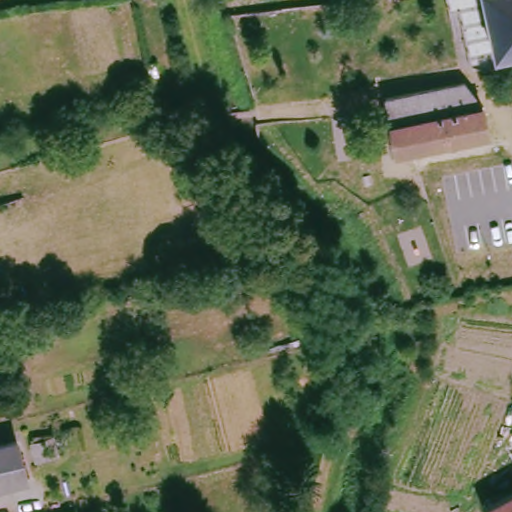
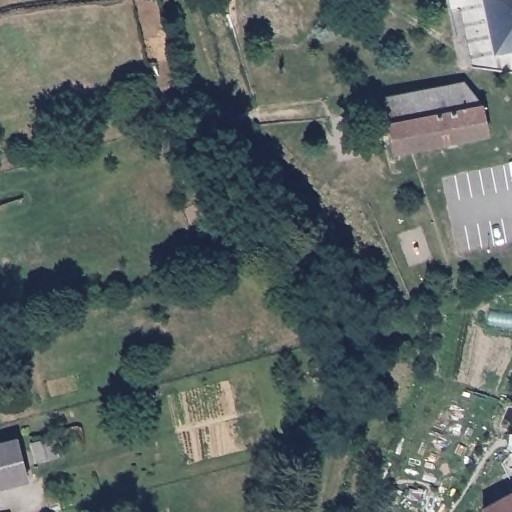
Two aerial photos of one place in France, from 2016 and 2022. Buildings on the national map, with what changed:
unchanged [(481,0),(512,0),(512,49),(492,53),(481,0)]
unchanged [(512,76),(512,81),(510,77),(512,76)]
unchanged [(487,134),(395,150),(383,98),(446,86),(464,82),(482,105),(487,134)]
unchanged [(15,439),(25,478),(0,484),(0,443),(15,439)]
unchanged [(512,489),(512,512),(485,512),(481,505),(512,489)]

